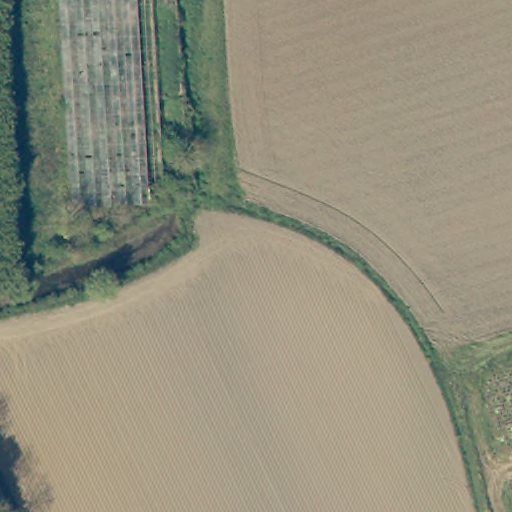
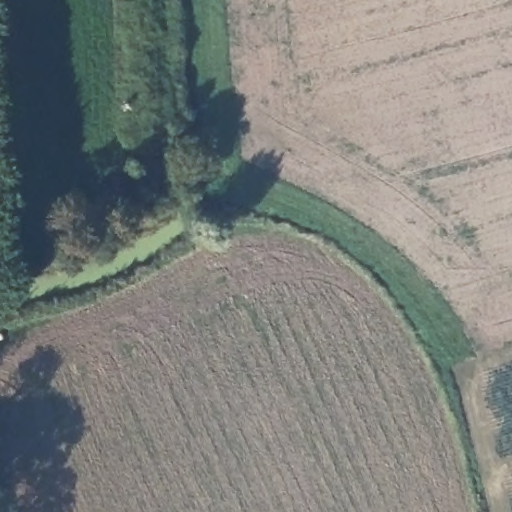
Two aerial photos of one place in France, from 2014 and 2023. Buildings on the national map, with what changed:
demolished [(65,206),(55,0),(148,0),(164,200),(65,206)]

